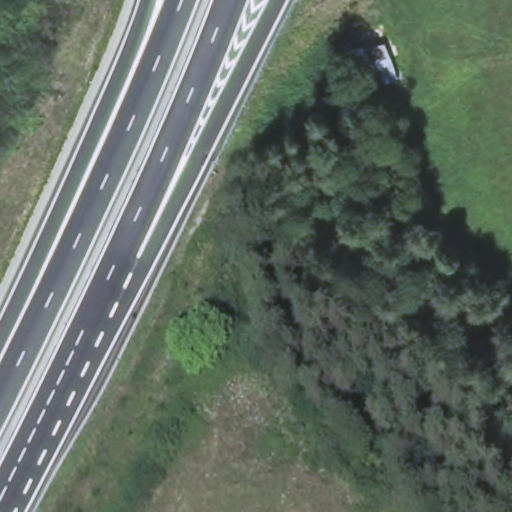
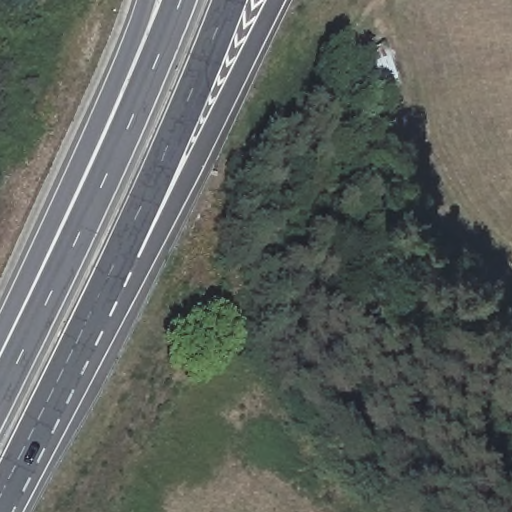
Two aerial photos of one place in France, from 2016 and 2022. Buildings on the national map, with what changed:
unchanged [(379,25),(400,82),(367,94),(344,37),(379,25)]

